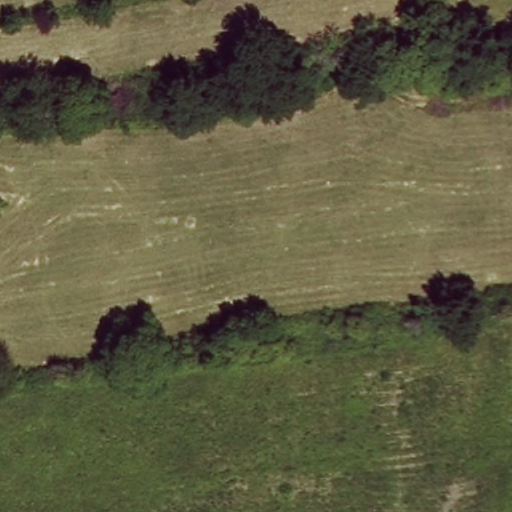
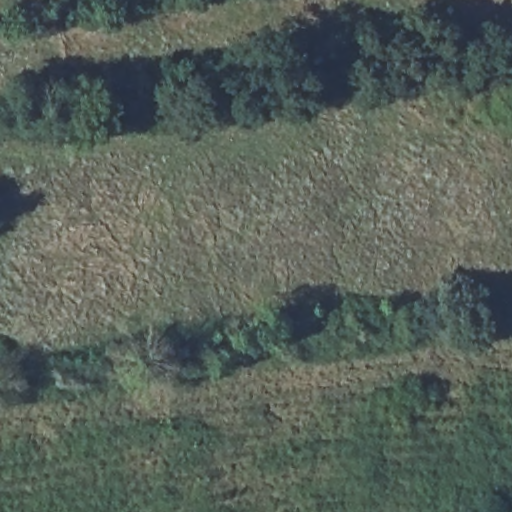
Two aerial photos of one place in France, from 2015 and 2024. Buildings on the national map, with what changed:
[]

